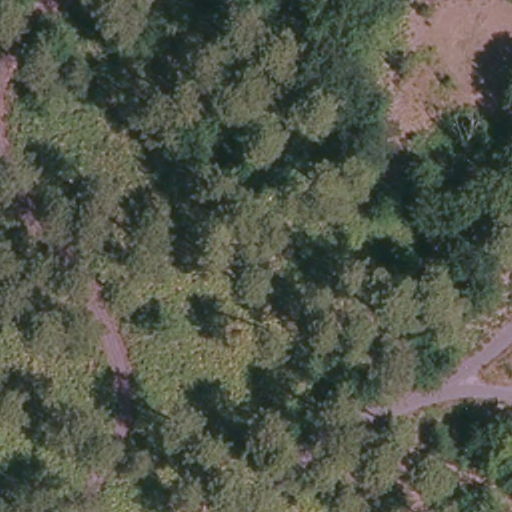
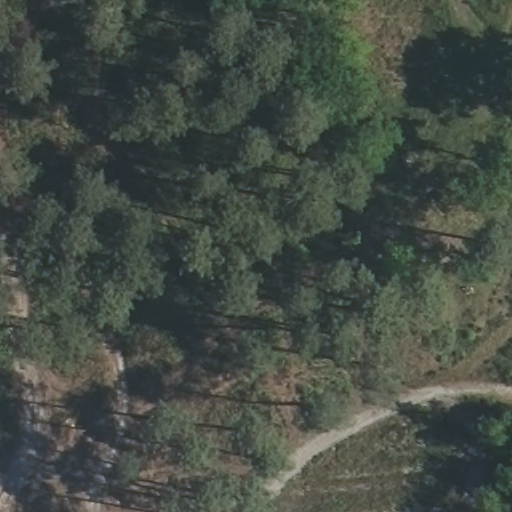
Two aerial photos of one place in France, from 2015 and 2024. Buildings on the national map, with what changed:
[]

